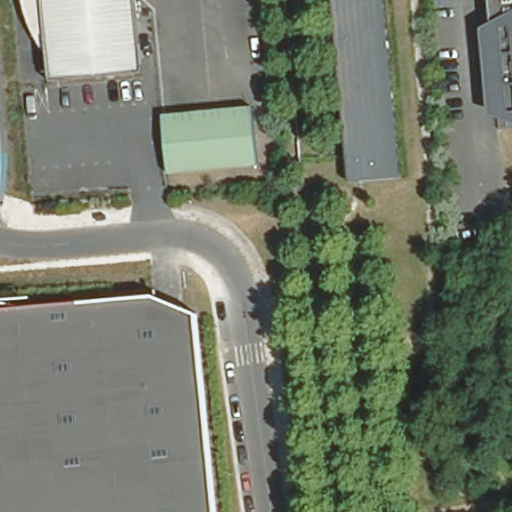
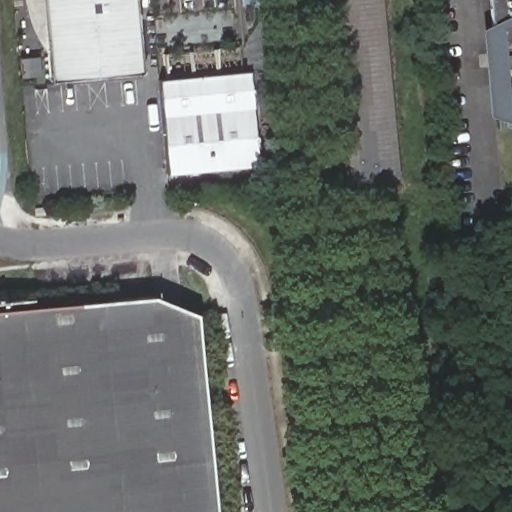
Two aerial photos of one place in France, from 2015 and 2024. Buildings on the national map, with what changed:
unchanged [(46,78),(39,0),(132,0),(138,70),(46,78)]
unchanged [(333,0),(384,0),(402,179),(352,183),(333,0)]
unchanged [(486,3),(480,3),(480,0),(512,0),(512,118),(497,119),(486,3)]
new [(161,79),(254,71),(257,103),(165,110),(161,79)]
unchanged [(257,103),(262,164),(170,172),(165,110),(257,103)]
unchanged [(156,297),(197,314),(216,512),(0,512),(0,310),(156,297)]

